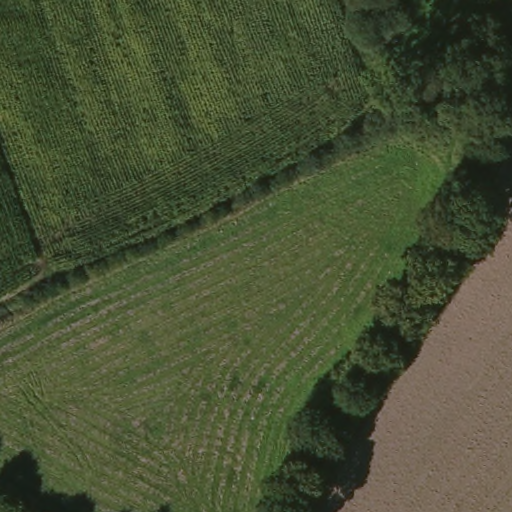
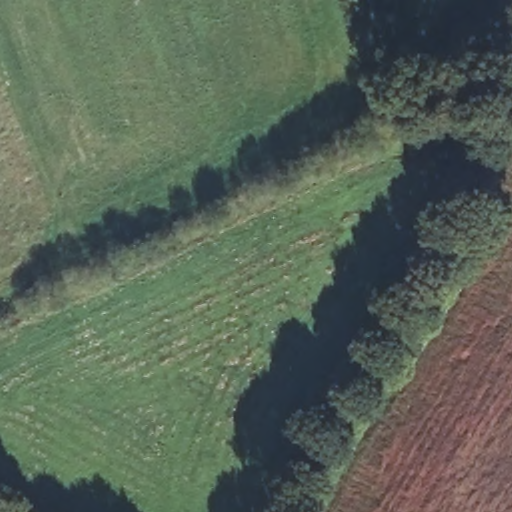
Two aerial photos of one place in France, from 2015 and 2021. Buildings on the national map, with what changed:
[]

